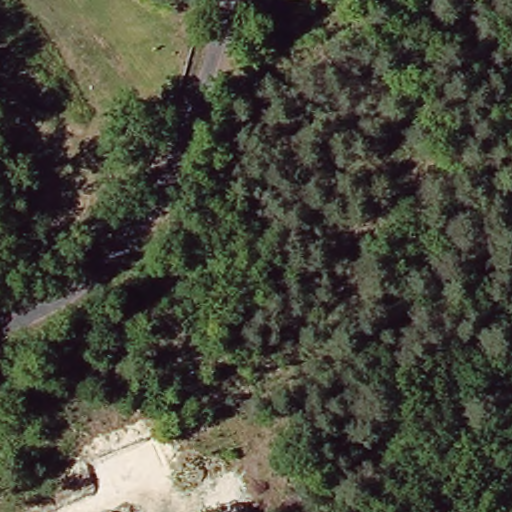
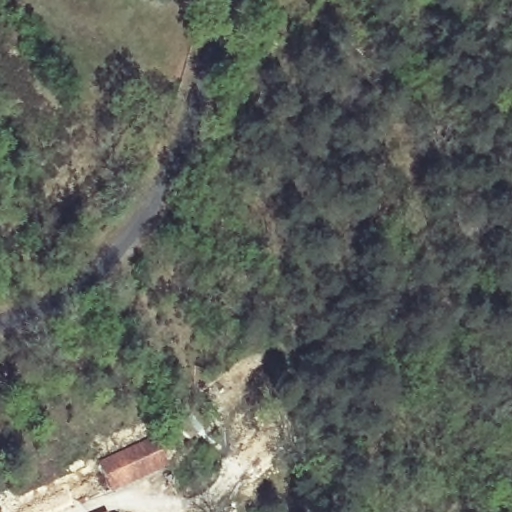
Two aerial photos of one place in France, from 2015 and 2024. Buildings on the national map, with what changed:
new [(98,463),(153,438),(168,467),(111,492),(98,463)]
unchanged [(121,512),(107,512),(119,507),(121,512)]

